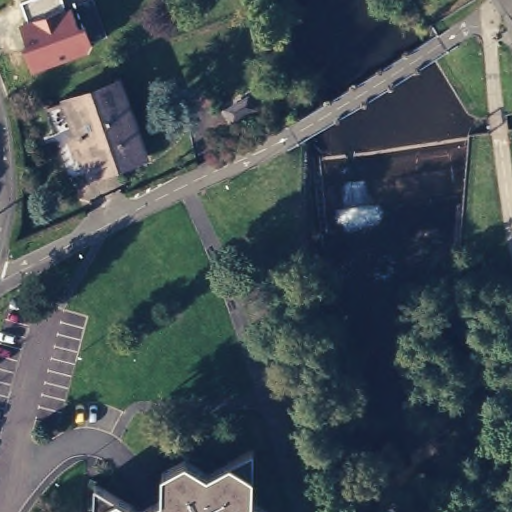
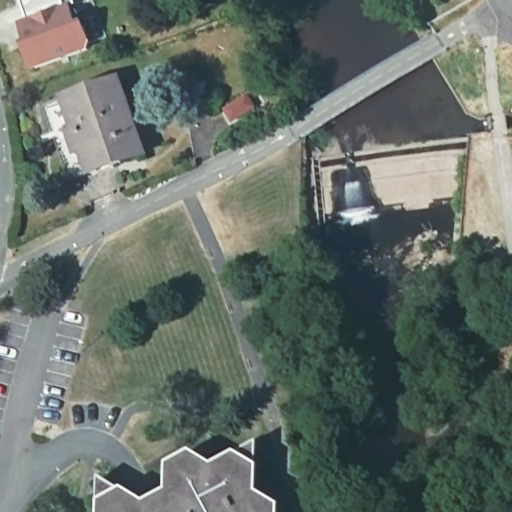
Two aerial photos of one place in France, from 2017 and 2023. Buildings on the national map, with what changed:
unchanged [(24,44),(26,40),(18,23),(28,19),(21,1),(24,0),(64,0),(66,7),(72,5),(79,25),(86,23),(93,44),(89,51),(33,71),(24,44)]
unchanged [(108,167),(86,175),(61,102),(84,94),(133,78),(158,151),(108,167)]
unchanged [(219,110),(256,87),(266,105),(230,127),(219,110)]
unchanged [(128,512),(149,498),(150,474),(173,461),(196,474),(242,450),(241,502),(257,512),(82,512),(83,485),(128,512)]

